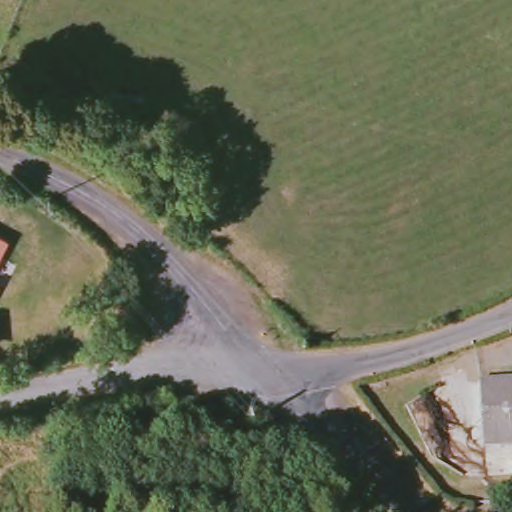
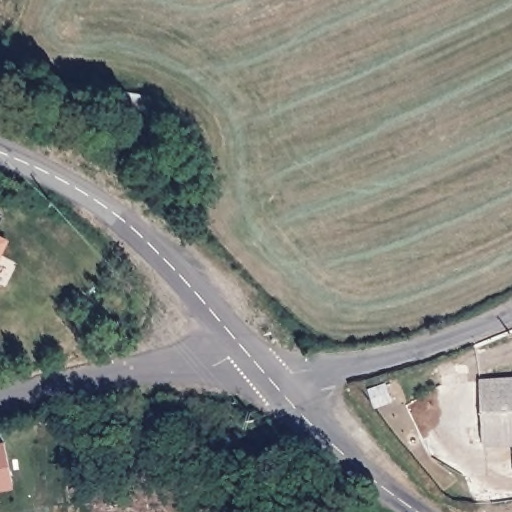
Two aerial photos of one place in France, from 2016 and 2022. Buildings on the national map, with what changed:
unchanged [(0,235),(10,240),(0,263),(0,235)]
unchanged [(0,288),(0,284),(2,285),(0,288)]
unchanged [(0,322),(1,322),(2,345),(2,356),(0,356),(0,322)]
unchanged [(483,447),(477,380),(512,378),(512,445),(483,447)]
new [(0,440),(4,440),(12,487),(0,489),(0,440)]

